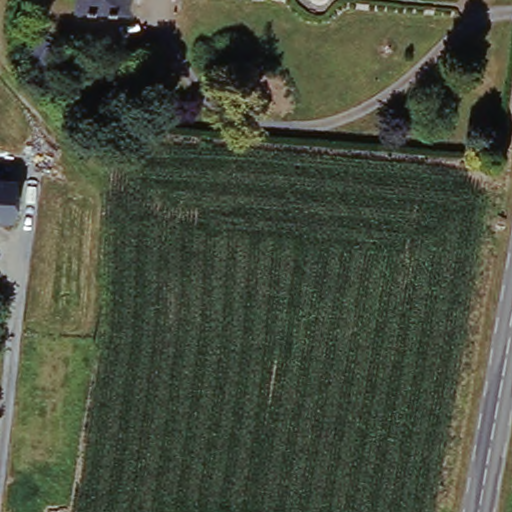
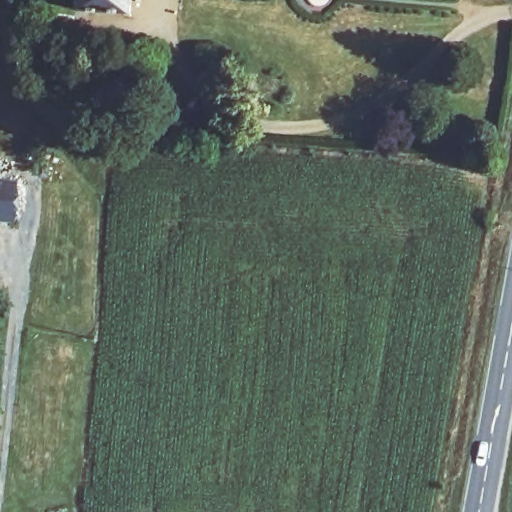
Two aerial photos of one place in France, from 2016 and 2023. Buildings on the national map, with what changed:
unchanged [(85,11),(86,0),(135,0),(134,18),(85,11)]
unchanged [(69,49),(50,68),(29,47),(50,28),(69,49)]
unchanged [(99,95),(97,112),(81,109),(82,93),(99,95)]
unchanged [(0,224),(0,189),(22,191),(19,226),(0,224)]

